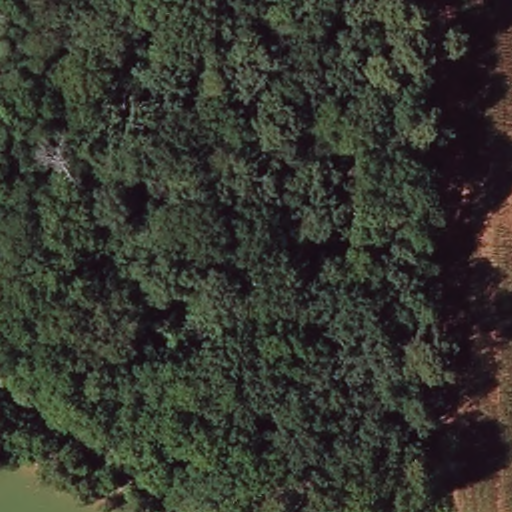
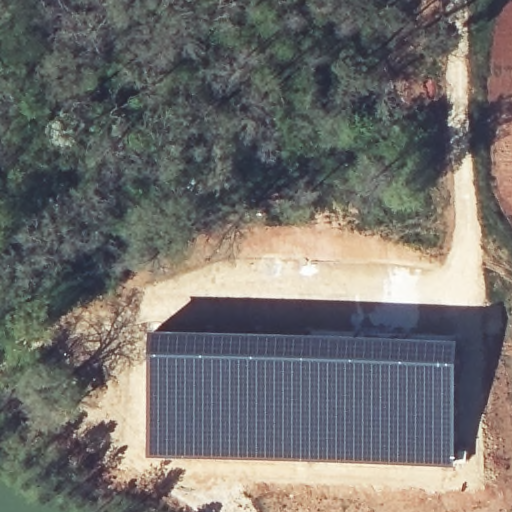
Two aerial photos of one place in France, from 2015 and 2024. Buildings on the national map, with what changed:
new [(154,325),(205,325),(463,332),(460,459),(151,453),(154,325)]

